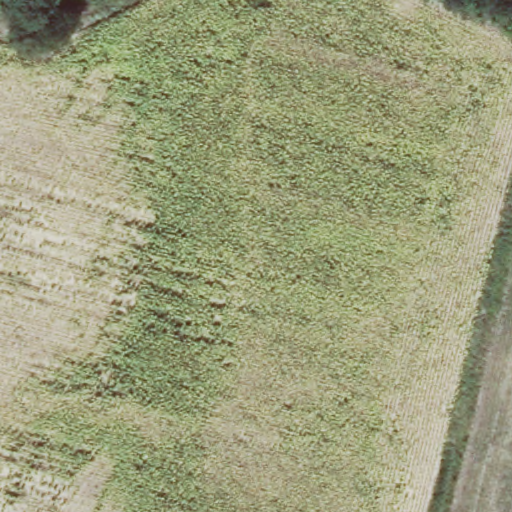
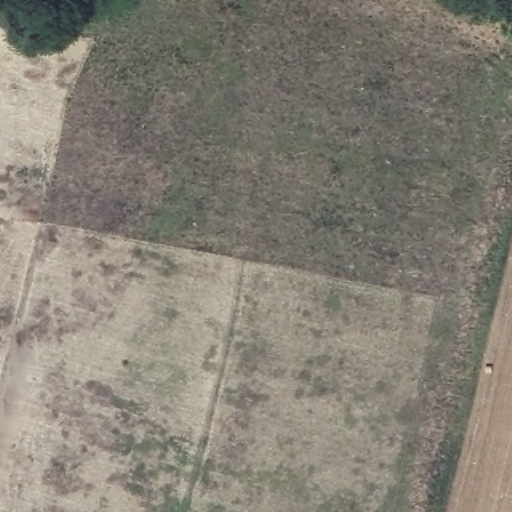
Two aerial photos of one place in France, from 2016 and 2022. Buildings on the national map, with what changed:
[]

